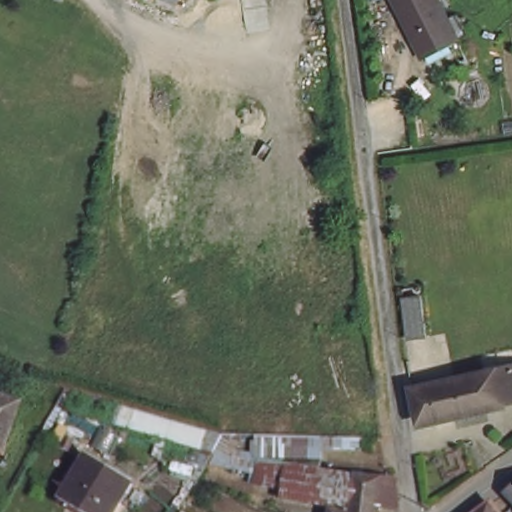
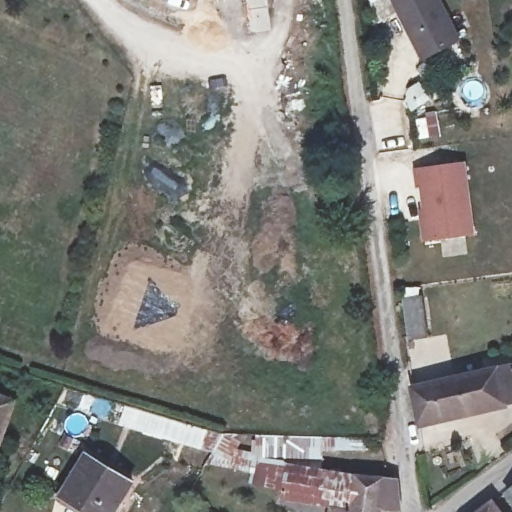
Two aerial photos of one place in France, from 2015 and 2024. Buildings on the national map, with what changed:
unchanged [(438,0),(454,31),(419,49),(394,0),(438,0)]
new [(463,161),(469,226),(423,230),(416,166),(463,161)]
unchanged [(429,297),(433,337),(416,339),(412,300),(429,297)]
unchanged [(512,370),(512,407),(418,422),(413,386),(512,370)]
unchanged [(19,398),(0,457),(0,391),(19,398)]
unchanged [(131,483),(114,512),(86,512),(64,498),(88,456),(131,483)]
unchanged [(409,502),(386,499),(383,512),(334,512),(336,502),(281,493),(286,465),(406,482),(409,502)]
unchanged [(512,492),(512,496),(510,494),(512,492)]
unchanged [(495,505),(500,512),(485,512),(495,505)]

